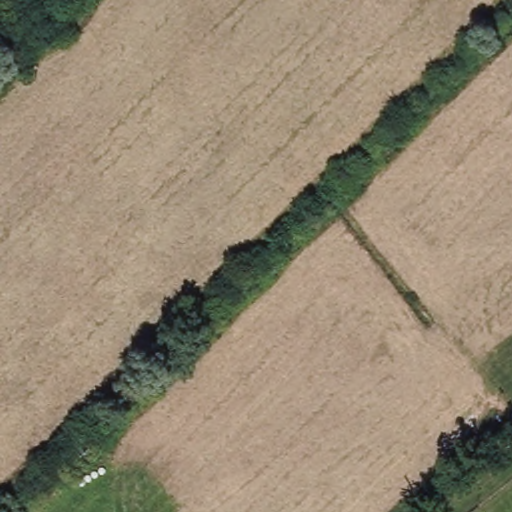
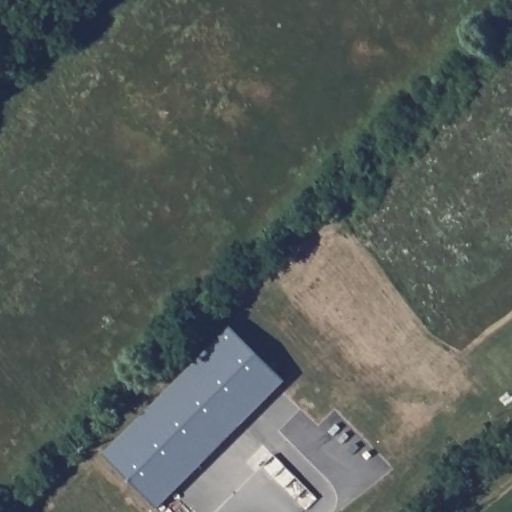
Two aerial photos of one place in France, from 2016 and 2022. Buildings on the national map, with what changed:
new [(285,380),(159,506),(104,454),(231,325),(285,380)]

